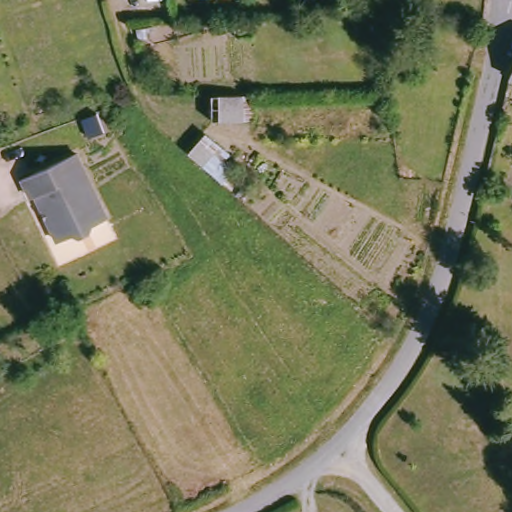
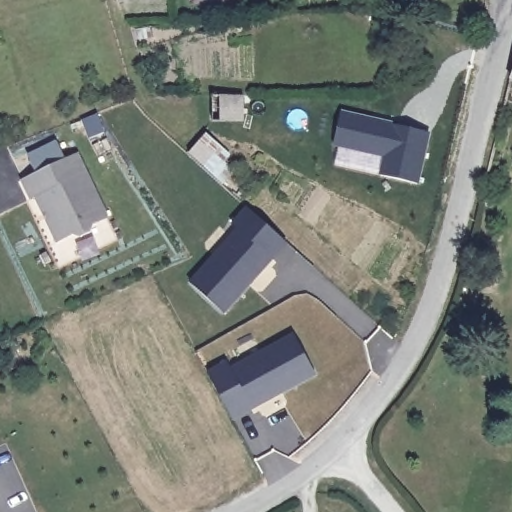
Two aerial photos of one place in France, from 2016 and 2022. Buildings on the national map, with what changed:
unchanged [(243,121),(213,122),(212,93),(243,93),(243,121)]
new [(331,163),(341,112),(429,131),(419,181),(331,163)]
unchanged [(191,152),(201,142),(206,146),(210,142),(226,156),(220,163),(224,167),(215,177),(191,152)]
unchanged [(33,195),(24,176),(78,152),(107,217),(91,224),(89,230),(80,234),(73,232),(58,239),(37,192),(33,195)]
new [(237,229),(232,222),(247,207),(287,242),(225,312),(190,281),(237,229)]
new [(208,371),(226,361),(228,364),(294,333),(316,373),(233,419),(208,371)]

